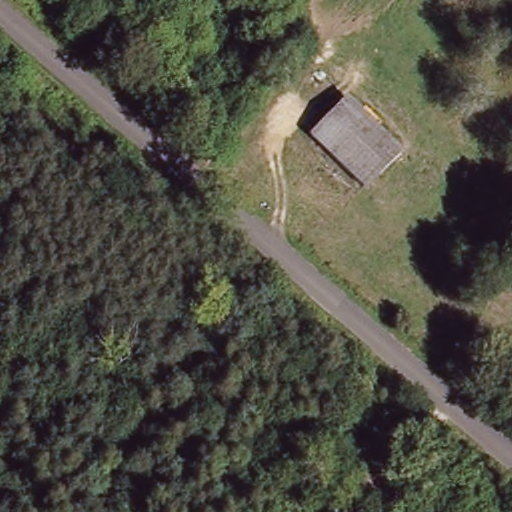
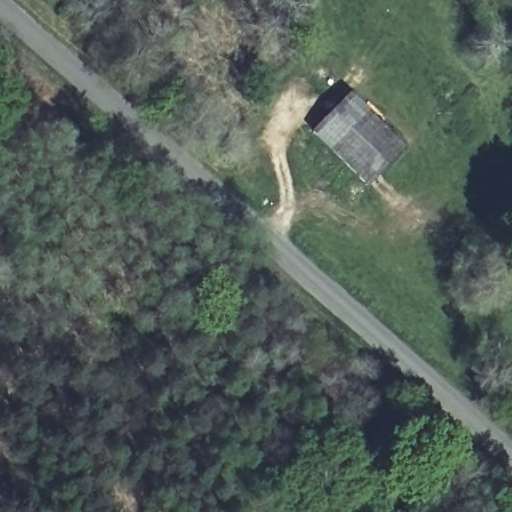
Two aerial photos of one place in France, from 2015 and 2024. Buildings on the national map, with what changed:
unchanged [(399,147),(366,184),(310,133),(343,97),(399,147)]

